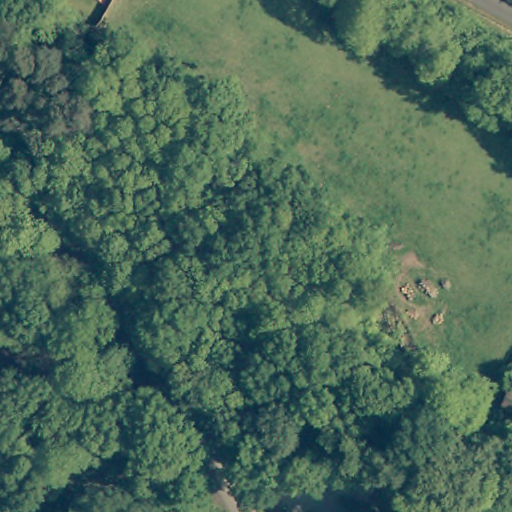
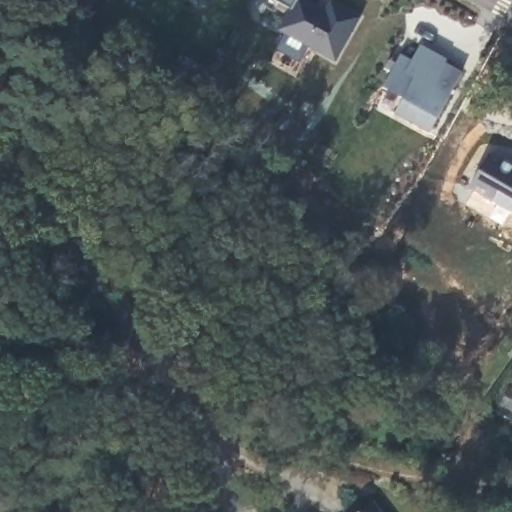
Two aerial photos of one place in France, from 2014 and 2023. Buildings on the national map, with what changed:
new [(332,1),(362,18),(338,64),(279,31),(292,10),(274,0),(307,0),(326,11),(332,1)]
new [(399,96),(382,88),(401,53),(410,58),(419,45),(463,69),(438,117),(431,134),(393,113),(399,96)]
new [(488,155),(512,168),(512,213),(467,187),(488,155)]
unchanged [(379,512),(357,512),(370,502),(379,512)]

